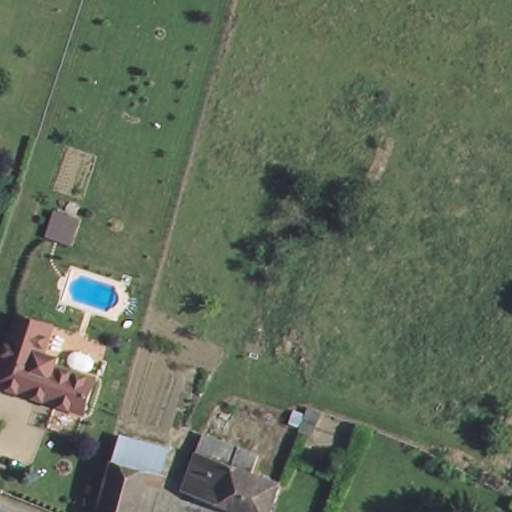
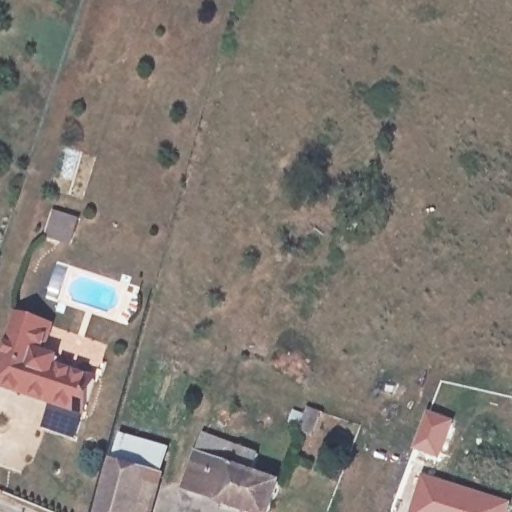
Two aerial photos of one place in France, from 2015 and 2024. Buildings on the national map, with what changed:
unchanged [(41,361),(55,367),(52,376),(93,390),(84,421),(0,393),(0,375),(10,343),(15,328),(25,332),(48,340),(41,361)]
unchanged [(335,405),(327,429),(314,425),(322,401),(335,405)]
new [(430,411),(454,420),(439,459),(414,450),(430,411)]
unchanged [(250,469),(277,479),(272,494),(280,504),(276,512),(275,512),(269,509),(267,512),(247,512),(187,485),(208,431),(256,451),(250,469)]
unchanged [(107,512),(122,461),(130,439),(166,451),(159,474),(164,475),(153,512),(107,512)]
new [(512,502),(508,512),(411,512),(423,474),(512,502)]

